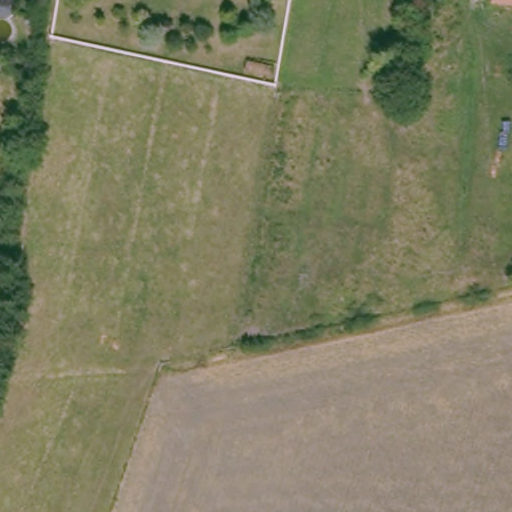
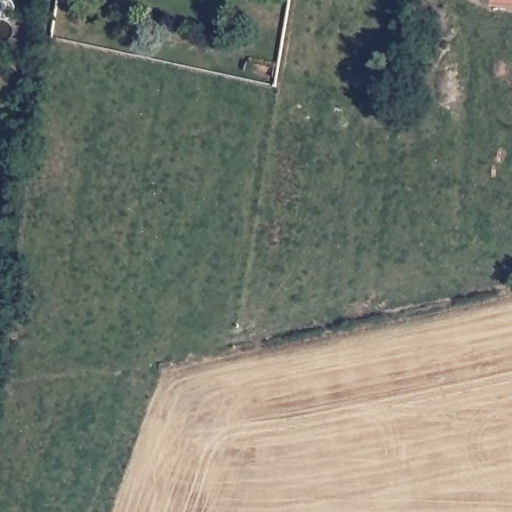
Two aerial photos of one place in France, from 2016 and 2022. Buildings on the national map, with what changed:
unchanged [(512,0),(512,5),(493,5),(493,0),(512,0)]

